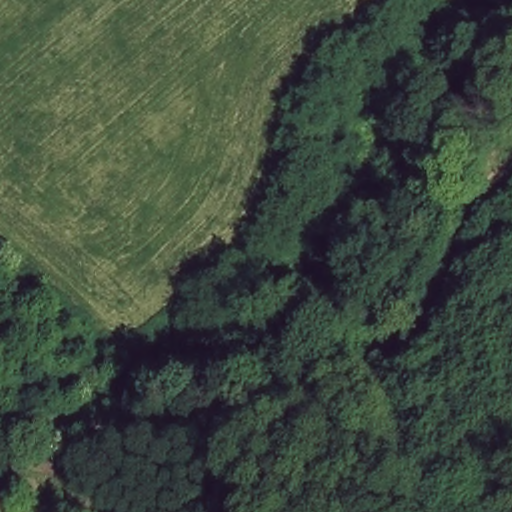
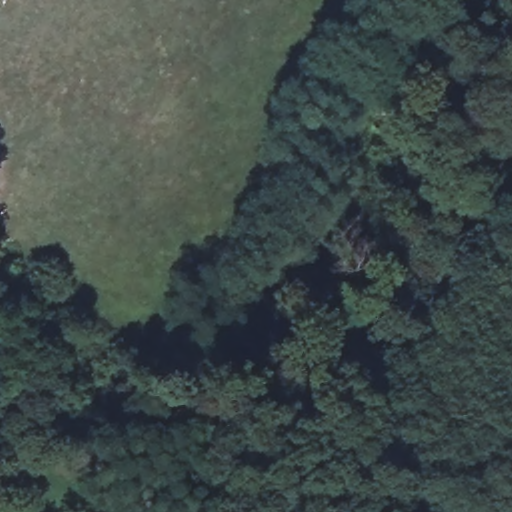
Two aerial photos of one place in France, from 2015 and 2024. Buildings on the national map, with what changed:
[]

